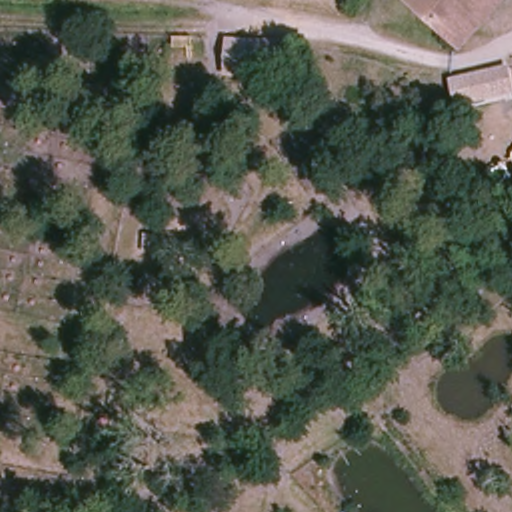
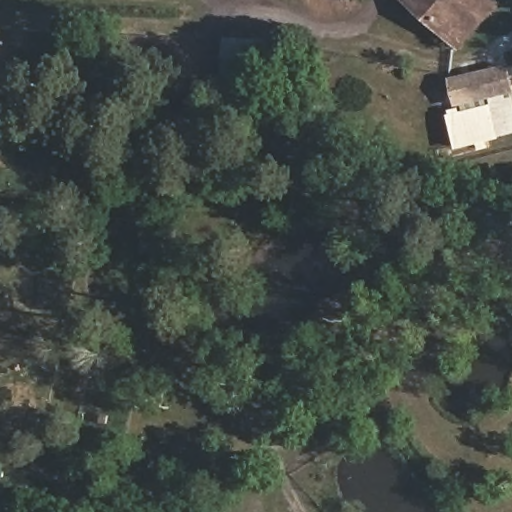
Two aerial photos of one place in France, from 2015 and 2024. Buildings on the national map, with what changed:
unchanged [(465,44),(452,34),(409,0),(500,0),(471,36),(465,44)]
unchanged [(288,42),(286,79),(224,78),(226,40),(288,42)]
unchanged [(510,63),(512,69),(512,94),(460,107),(453,75),(510,63)]
new [(512,94),(512,135),(456,150),(446,112),(460,107),(512,94)]

